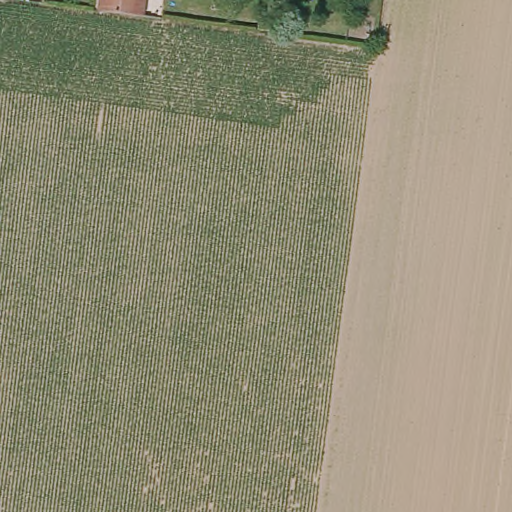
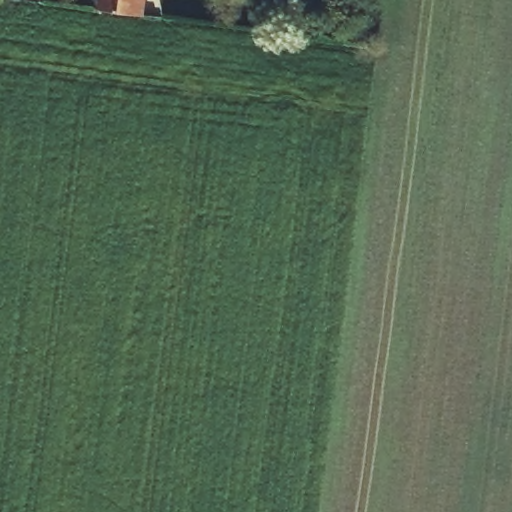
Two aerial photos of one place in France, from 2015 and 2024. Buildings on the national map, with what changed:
unchanged [(142,17),(100,11),(101,0),(145,0),(142,17)]

